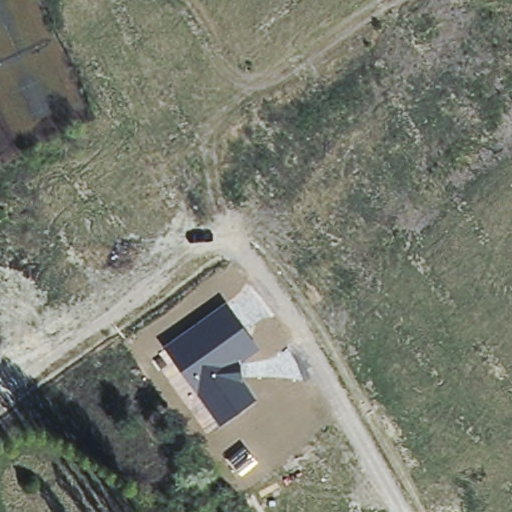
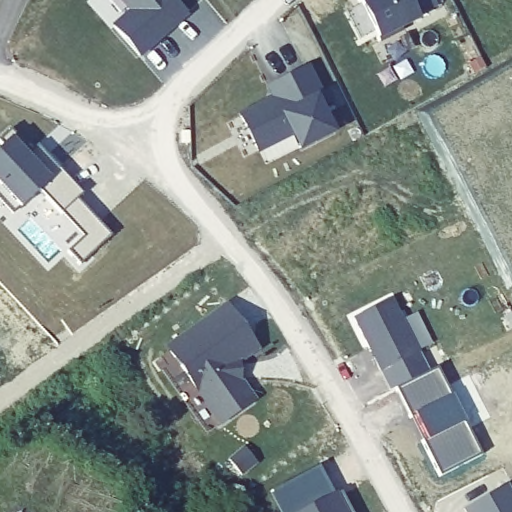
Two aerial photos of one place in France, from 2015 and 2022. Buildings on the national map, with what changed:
new [(140,58),(111,26),(127,11),(116,0),(175,0),(189,16),(140,58)]
new [(434,0),(436,5),(416,15),(418,18),(401,26),(403,30),(379,41),(374,31),(359,40),(345,13),(361,5),(358,0),(434,0)]
new [(271,92),(269,87),(278,83),(307,68),(322,97),(330,94),(334,101),(319,108),(331,132),(300,148),(292,133),(258,150),(241,115),(275,99),(271,92)]
new [(39,190),(19,208),(12,215),(0,202),(0,146),(2,145),(0,143),(0,137),(10,129),(31,150),(37,145),(46,155),(83,193),(77,199),(99,222),(112,236),(80,265),(67,252),(83,237),(61,214),(39,190)]
new [(391,298),(419,353),(381,372),(374,357),(377,356),(373,346),(370,348),(354,317),(391,298)]
new [(261,350),(240,363),(240,380),(242,380),(257,400),(220,427),(196,392),(163,348),(226,303),(261,350)]
new [(438,367),(482,455),(440,477),(421,441),(426,438),(415,416),(410,419),(395,389),(438,367)]
new [(319,466),(335,495),(341,492),(352,512),(282,512),(271,491),(319,466)]
new [(512,496),(512,512),(466,512),(464,509),(506,485),(512,496)]

